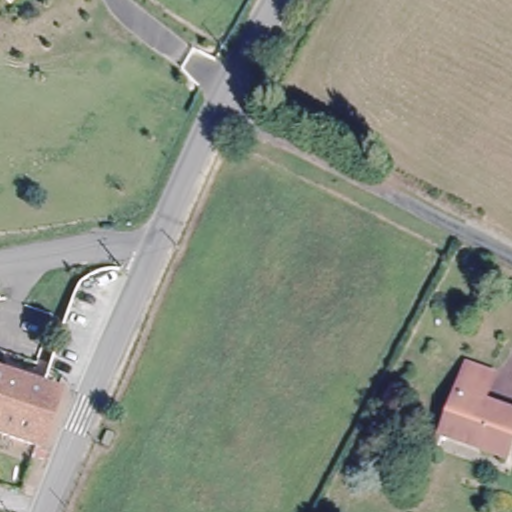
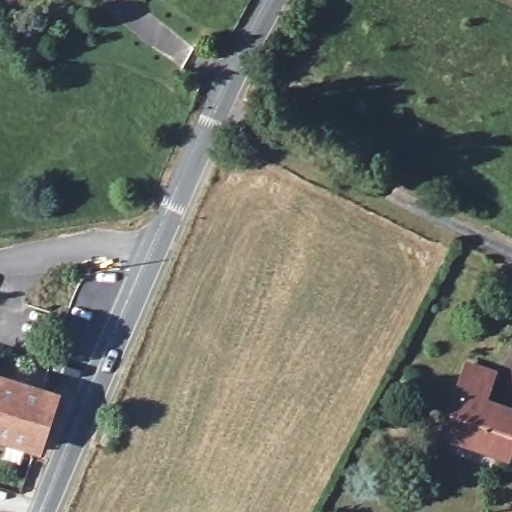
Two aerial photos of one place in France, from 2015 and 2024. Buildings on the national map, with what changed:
unchanged [(434,428),(462,367),(491,380),(483,400),(512,413),(512,451),(507,462),(501,460),(434,428)]
unchanged [(37,451),(0,437),(0,376),(55,396),(37,451)]
unchanged [(109,430),(115,433),(109,447),(103,444),(109,430)]

